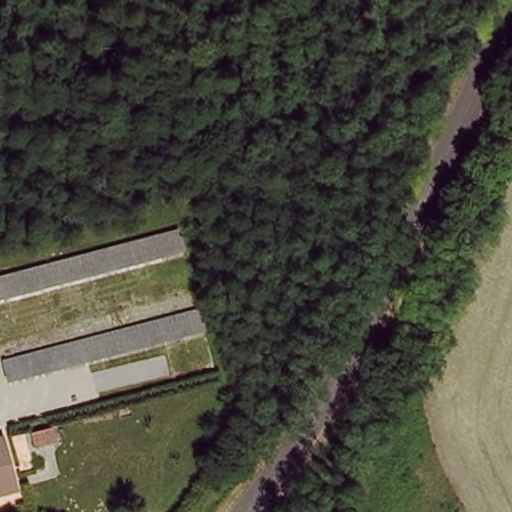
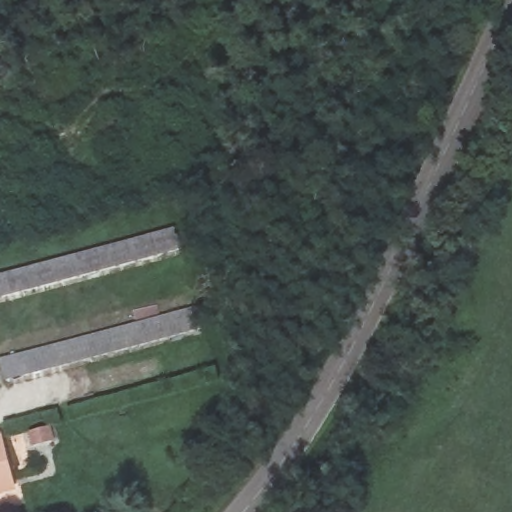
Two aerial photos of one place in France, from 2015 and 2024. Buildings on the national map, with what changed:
unchanged [(185,261),(0,303),(0,271),(180,229),(185,261)]
unchanged [(205,336),(7,382),(2,354),(197,311),(205,336)]
unchanged [(35,441),(54,437),(56,450),(36,453),(35,441)]
unchanged [(0,497),(0,445),(5,444),(14,495),(0,497)]

